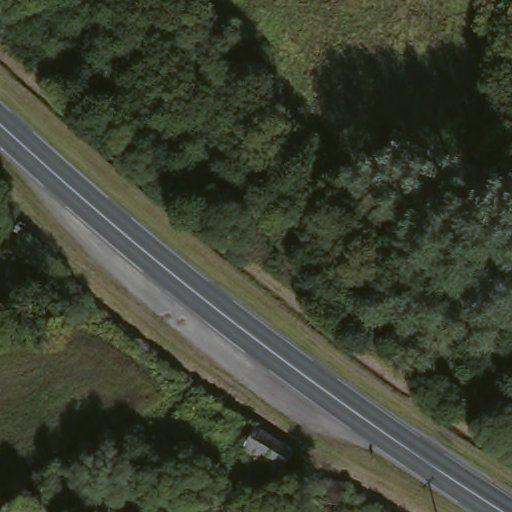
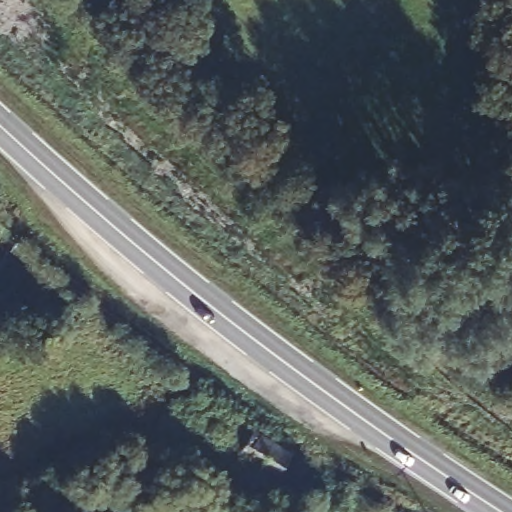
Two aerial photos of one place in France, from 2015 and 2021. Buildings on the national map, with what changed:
unchanged [(246,461),(248,460),(231,450),(243,432),(259,443),(299,462),(284,483),(246,461)]
unchanged [(184,450),(196,482),(164,496),(158,484),(149,487),(146,485),(142,487),(136,470),(184,450)]
unchanged [(131,497),(89,512),(80,512),(74,495),(126,476),(131,497)]

